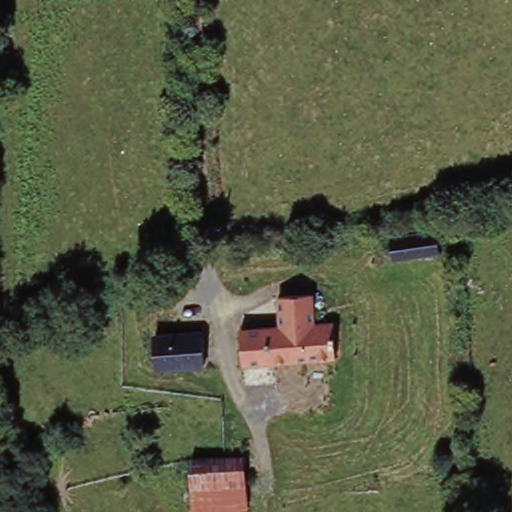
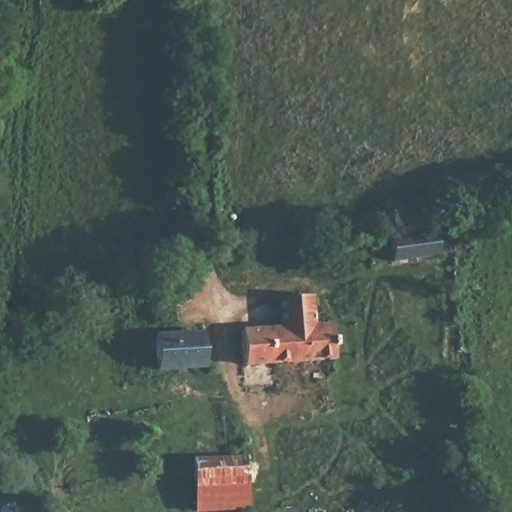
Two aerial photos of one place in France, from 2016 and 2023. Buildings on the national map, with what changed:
unchanged [(283,327),(288,326),(287,310),(282,311),(281,296),(314,294),(316,325),(336,324),(338,356),(245,362),(243,329),(283,327)]
unchanged [(207,372),(160,372),(159,340),(205,339),(207,372)]
unchanged [(248,488),(198,488),(199,464),(249,463),(248,488)]
unchanged [(198,488),(248,488),(248,512),(198,512),(198,488)]

